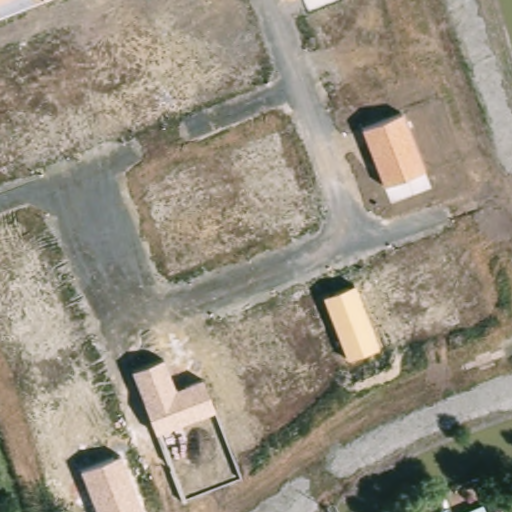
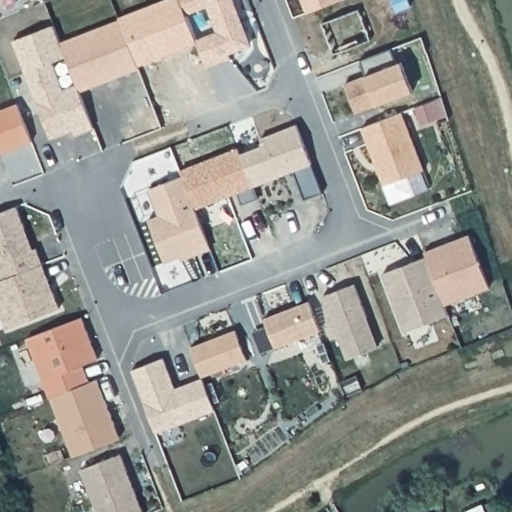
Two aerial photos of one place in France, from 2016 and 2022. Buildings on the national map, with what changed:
new [(195,39),(216,31),(207,7),(185,14),(180,0),(235,0),(252,45),(227,54),(229,60),(206,68),(195,39)]
new [(301,0),(340,0),(306,13),(301,0)]
new [(119,19),(138,69),(79,91),(66,57),(60,41),(119,19)]
new [(50,138),(13,39),(53,25),(60,41),(66,57),(52,61),(63,88),(76,84),(79,91),(94,130),(75,136),(72,130),(50,138)]
new [(401,61),(413,90),(376,104),(376,106),(355,115),(343,83),(364,75),(401,61)]
new [(18,103),(32,141),(0,153),(0,110),(18,103)]
unchanged [(361,128),(404,111),(425,169),(384,185),(361,128)]
new [(240,153),(262,144),(260,138),(296,125),(322,192),(304,198),(294,172),(252,186),(240,153)]
new [(147,218),(158,215),(148,188),(182,176),(210,250),(181,260),(179,256),(164,262),(147,218)]
new [(0,312),(0,280),(1,279),(0,275),(0,213),(17,207),(33,249),(37,248),(60,307),(6,327),(0,312)]
new [(472,235),(493,288),(449,305),(430,257),(428,252),(472,235)]
new [(414,263),(430,257),(449,305),(453,315),(409,332),(387,274),(403,267),(414,263)]
unchanged [(323,296),(354,284),(378,345),(347,358),(323,296)]
new [(313,302),(324,330),(279,348),(268,319),(313,302)]
new [(190,347),(235,329),(247,360),(202,377),(190,347)]
unchanged [(133,370),(163,359),(174,388),(202,377),(214,410),(157,433),(133,370)]
new [(50,396),(98,379),(120,438),(73,454),(50,396)]
unchanged [(81,470),(121,454),(144,512),(98,512),(81,470)]

